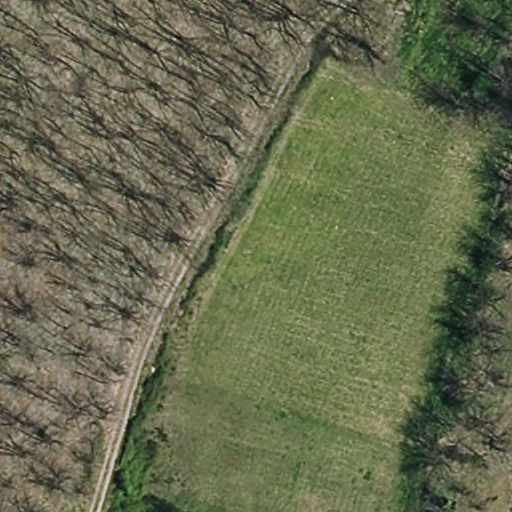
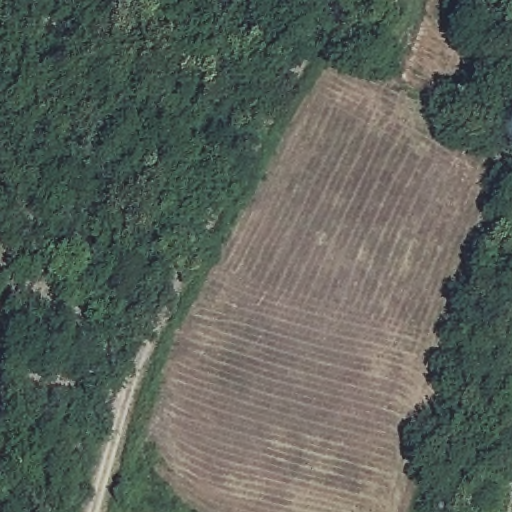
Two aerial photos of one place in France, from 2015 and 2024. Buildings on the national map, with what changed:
unchanged [(512,108),(512,131),(504,130),(512,108)]

